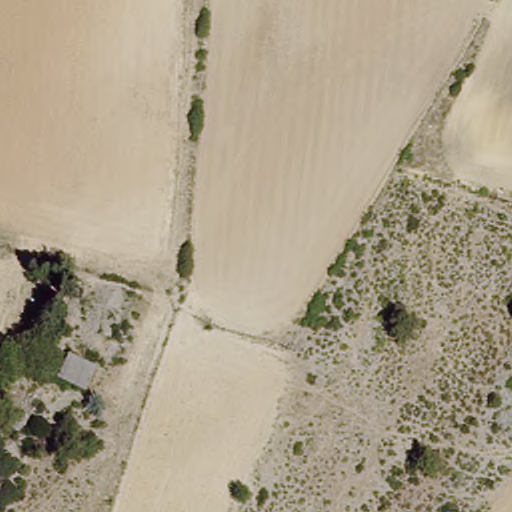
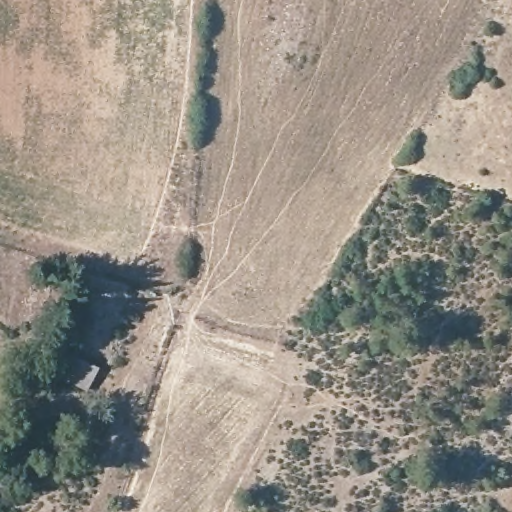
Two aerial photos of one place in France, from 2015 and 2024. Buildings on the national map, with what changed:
unchanged [(99,363),(96,392),(63,377),(67,349),(99,363)]

